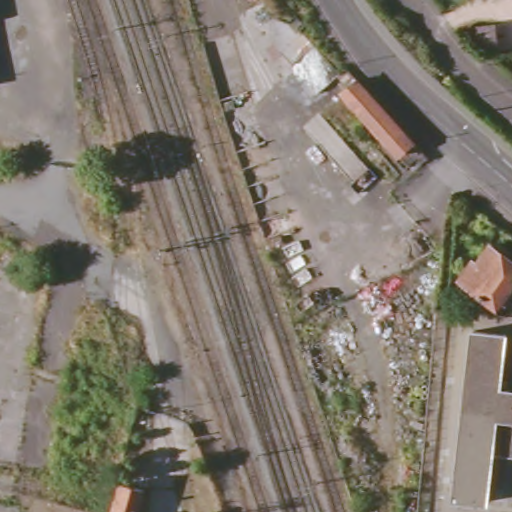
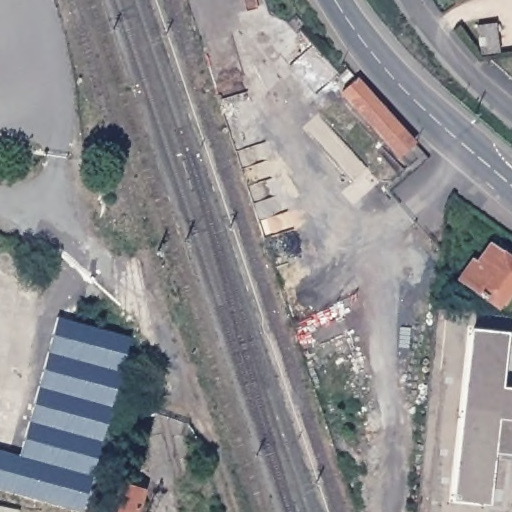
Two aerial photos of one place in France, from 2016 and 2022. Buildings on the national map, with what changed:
unchanged [(425,154),(409,169),(341,95),(357,80),(425,154)]
unchanged [(497,304),(461,278),(474,261),(477,263),(490,244),(512,262),(512,282),(497,304)]
new [(22,456),(61,318),(134,339),(83,512),(80,512),(0,489),(0,450),(22,456)]
unchanged [(500,386),(512,388),(512,453),(493,451),(487,502),(454,499),(472,330),(505,334),(500,386)]
unchanged [(139,491),(133,512),(109,512),(117,485),(139,491)]

